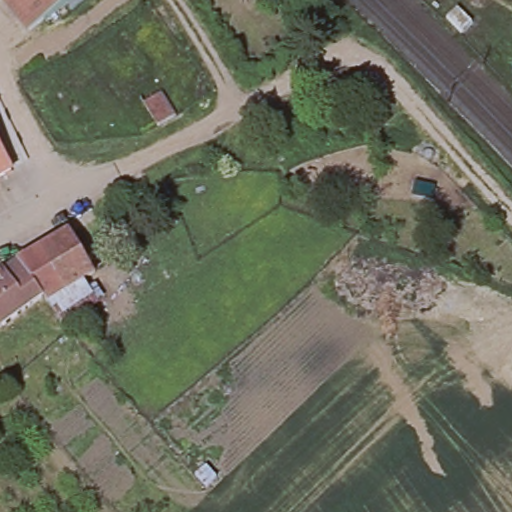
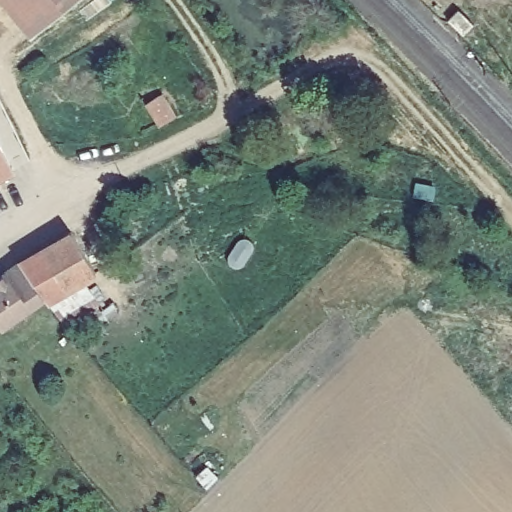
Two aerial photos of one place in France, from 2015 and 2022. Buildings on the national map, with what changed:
unchanged [(7,0),(77,0),(34,34),(7,0)]
unchanged [(157,126),(145,104),(160,95),(174,117),(157,126)]
unchanged [(0,169),(0,139),(12,163),(0,169)]
unchanged [(51,297),(47,291),(21,255),(70,226),(95,270),(84,276),(96,298),(64,317),(51,297)]
unchanged [(0,319),(0,268),(21,255),(47,291),(2,322),(0,319)]

